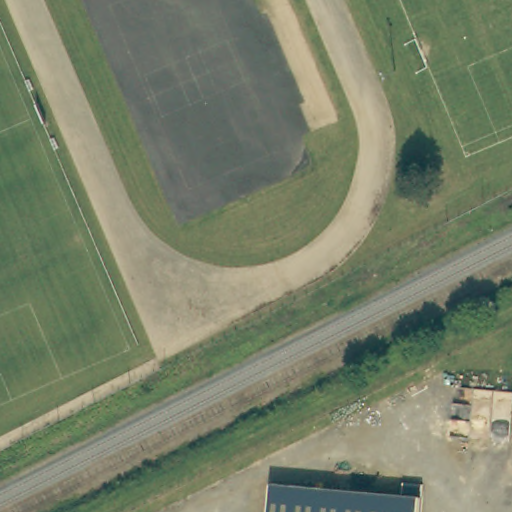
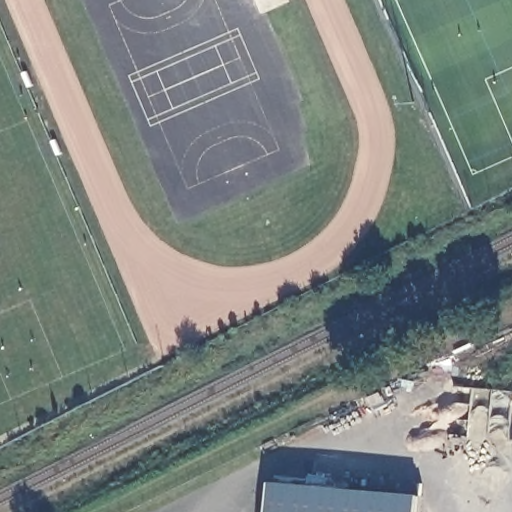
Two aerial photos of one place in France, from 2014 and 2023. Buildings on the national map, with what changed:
unchanged [(395,497),(396,485),(416,486),(414,512),(262,512),(264,485),(395,497)]

